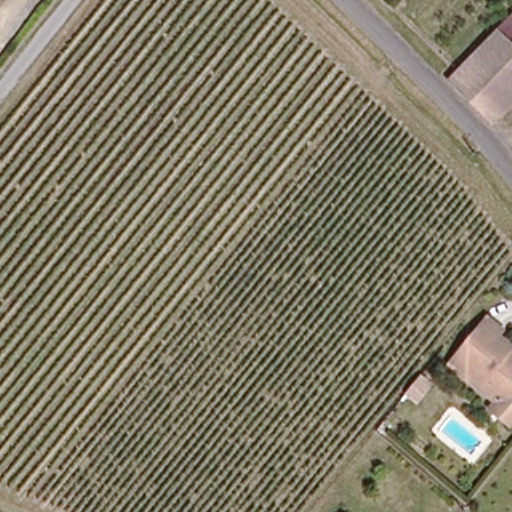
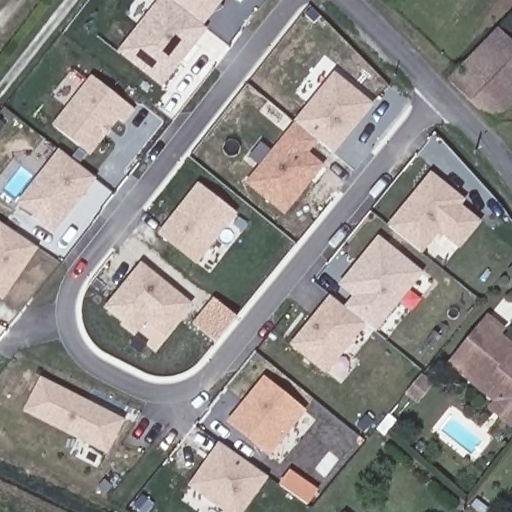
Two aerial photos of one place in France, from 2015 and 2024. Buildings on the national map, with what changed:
new [(169,0),(210,33),(164,90),(117,52),(161,0),(169,0)]
new [(169,0),(224,0),(203,27),(169,0)]
unchanged [(512,102),(489,127),(446,82),(512,13),(512,102)]
new [(297,125),(294,122),(334,72),(374,106),(334,155),(323,144),(321,146),(297,125)]
new [(93,79),(136,113),(126,127),(120,122),(92,159),(54,127),(93,79)]
new [(246,187),(297,125),(321,146),(311,156),(326,167),(284,219),(246,187)]
new [(60,151),(96,182),(54,235),(18,206),(60,151)]
new [(431,172),(467,201),(463,206),(483,222),(460,250),(440,234),(423,254),(388,225),(431,172)]
new [(196,265),(158,235),(198,182),(238,214),(196,265)]
new [(39,248),(4,301),(0,298),(0,221),(39,248)]
new [(290,345),(330,296),(344,307),(353,297),(338,285),(379,236),(424,273),(376,332),(367,325),(327,375),(290,345)]
new [(143,266),(193,307),(167,340),(148,326),(139,336),(106,312),(143,266)]
unchanged [(493,405),(448,368),(484,323),(499,334),(494,341),(508,352),(512,356),(512,421),(507,428),(486,413),(493,405)]
new [(226,422),(264,376),(307,411),(269,457),(226,422)]
new [(126,424),(109,457),(22,416),(42,381),(126,424)]
new [(188,486),(219,442),(269,477),(244,512),(225,512),(188,486)]

